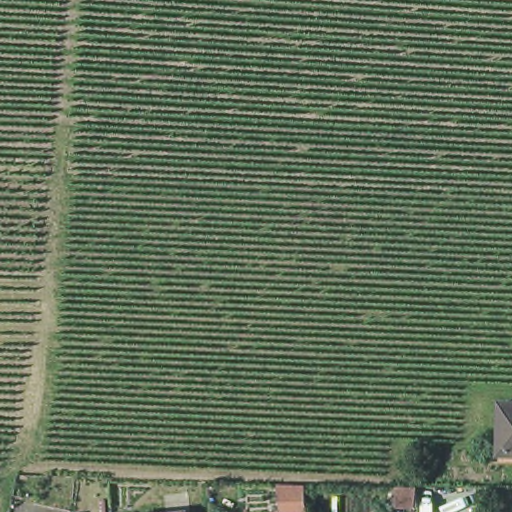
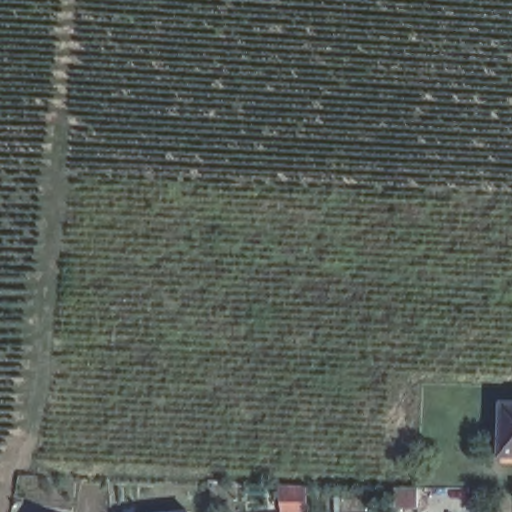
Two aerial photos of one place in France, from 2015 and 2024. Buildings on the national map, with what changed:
unchanged [(506,457),(507,405),(512,405),(512,457),(506,457)]
unchanged [(314,509),(287,509),(285,484),(311,485),(312,485),(314,509)]
unchanged [(418,492),(418,510),(395,510),(395,491),(418,492)]
unchanged [(197,511),(197,512),(182,512),(197,511)]

